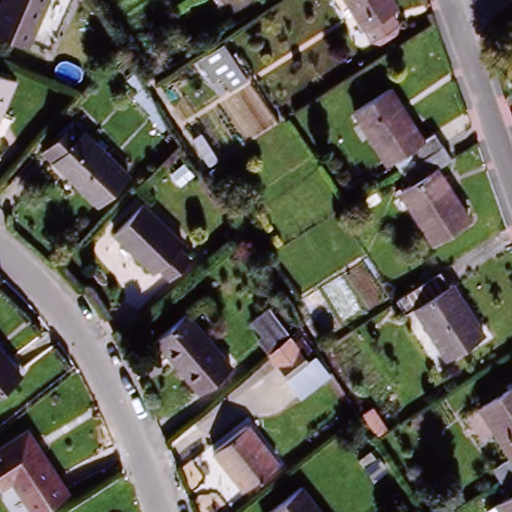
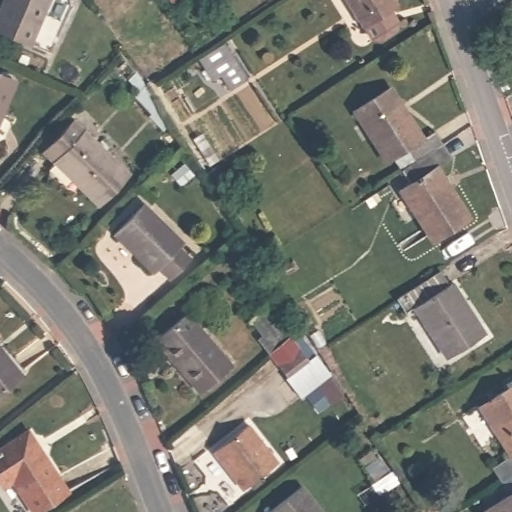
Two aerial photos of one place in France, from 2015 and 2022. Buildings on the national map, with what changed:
unchanged [(53,0),(32,51),(0,38),(0,15),(6,0),(53,0)]
unchanged [(89,0),(94,0),(91,2),(89,0)]
unchanged [(360,29),(341,0),(386,0),(390,7),(387,11),(397,31),(371,46),(360,29)]
unchanged [(220,81),(212,86),(200,67),(225,49),(247,84),(229,96),(220,81)]
unchanged [(0,124),(0,81),(16,87),(0,124)]
unchanged [(410,156),(387,171),(353,119),(389,96),(420,145),(432,136),(442,151),(417,167),(410,156)]
unchanged [(100,212),(53,169),(41,158),(58,140),(71,127),(82,137),(129,181),(100,212)]
unchanged [(439,173),(471,227),(434,251),(421,231),(422,225),(406,197),(414,192),(404,176),(417,167),(442,151),(452,166),(439,173)]
unchanged [(170,283),(159,273),(154,277),(115,240),(144,210),(182,247),(177,252),(189,263),(170,283)]
unchanged [(445,363),(415,314),(404,321),(394,306),(440,277),(451,293),(454,291),(484,338),(445,363)]
unchanged [(275,363),(271,358),(259,345),(264,341),(252,327),(269,313),(292,341),(299,350),(313,367),(292,384),(275,363)]
unchanged [(159,342),(189,317),(233,369),(203,395),(159,342)]
unchanged [(0,396),(0,355),(21,379),(0,396)]
unchanged [(500,487),(492,475),(510,463),(478,411),(512,390),(512,480),(500,487)]
unchanged [(279,467),(245,494),(215,457),(250,429),(279,467)]
unchanged [(69,492),(38,512),(36,512),(17,483),(7,490),(0,479),(0,454),(30,435),(69,492)]
unchanged [(512,480),(512,512),(498,512),(497,510),(510,502),(500,487),(512,480)]
unchanged [(299,491),(315,512),(272,512),(299,491)]

